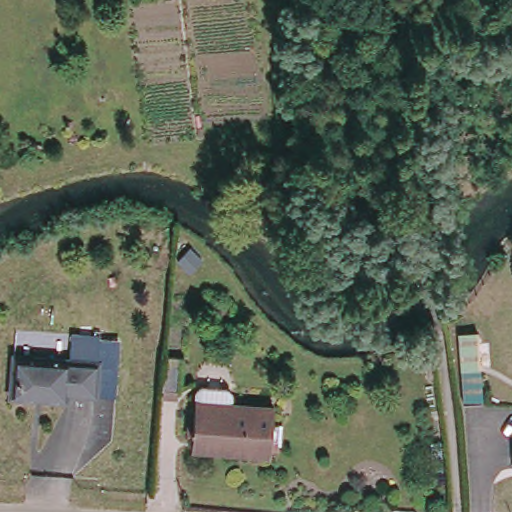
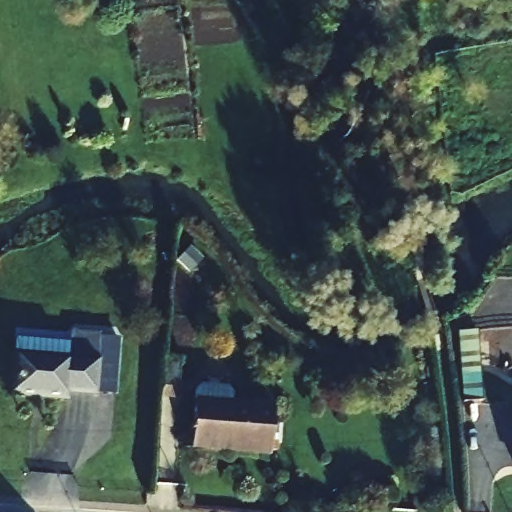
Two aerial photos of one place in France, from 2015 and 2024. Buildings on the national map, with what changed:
unchanged [(70,328),(99,330),(95,356),(66,354),(70,328)]
unchanged [(63,390),(62,397),(5,392),(7,349),(95,356),(93,392),(63,390)]
unchanged [(178,360),(176,404),(157,404),(159,360),(178,360)]
unchanged [(458,366),(481,365),(482,399),(460,400),(458,366)]
unchanged [(270,447),(226,447),(226,438),(197,437),(197,406),(198,395),(203,390),(230,391),(234,395),(233,407),(270,409),(270,447)]

